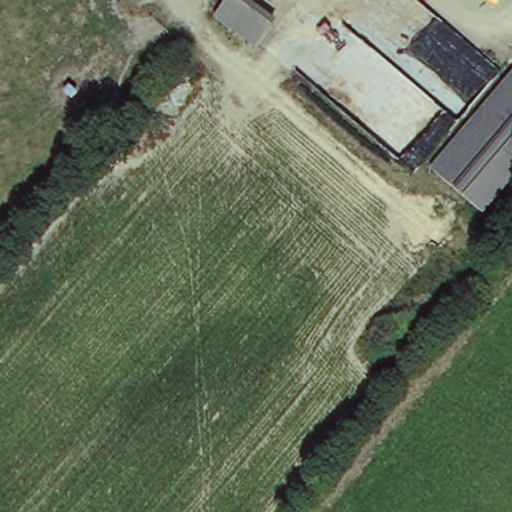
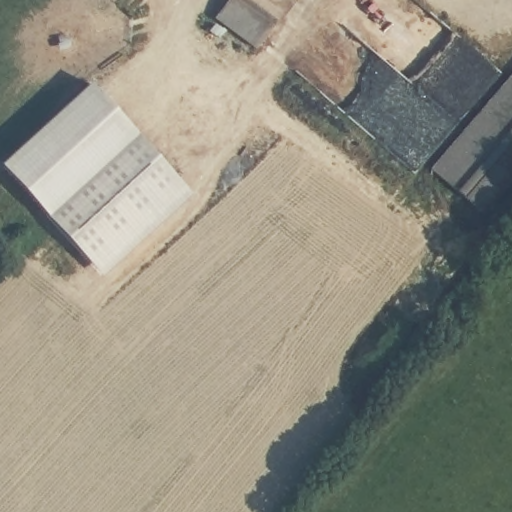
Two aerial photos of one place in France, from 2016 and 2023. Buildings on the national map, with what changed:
unchanged [(260,46),(217,12),(230,0),(251,0),(278,25),(260,46)]
unchanged [(512,70),(512,181),(483,216),(428,171),(512,70)]
new [(189,192),(100,276),(0,170),(0,166),(92,84),(189,192)]

